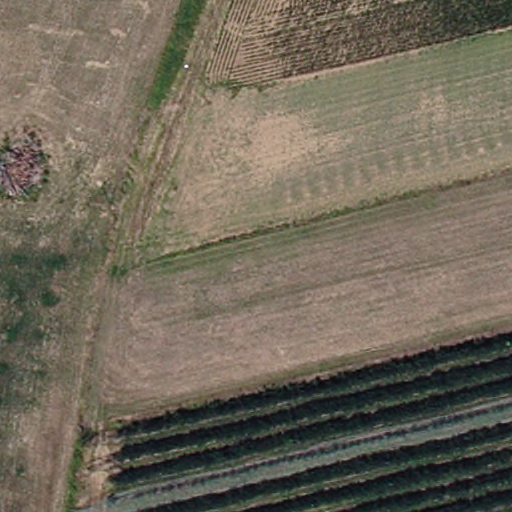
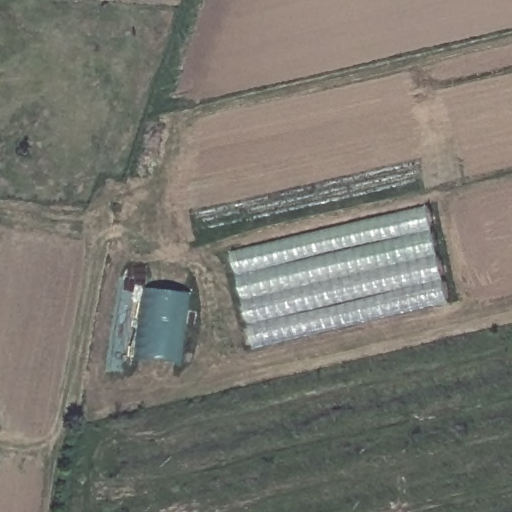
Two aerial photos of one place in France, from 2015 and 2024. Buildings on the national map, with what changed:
new [(234,252),(428,206),(451,302),(256,348),(234,252)]
new [(141,357),(150,287),(193,293),(184,363),(141,357)]

